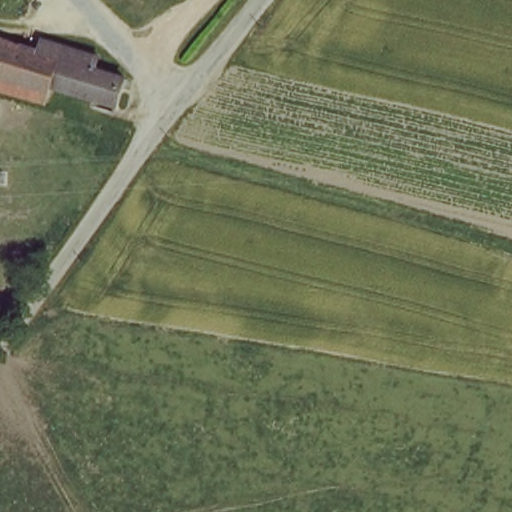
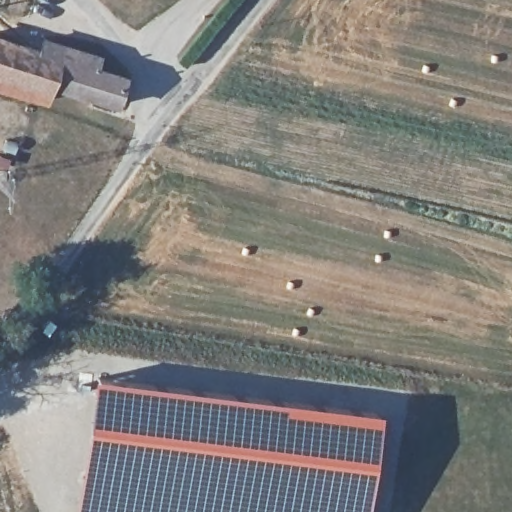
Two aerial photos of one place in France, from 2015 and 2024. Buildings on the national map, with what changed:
unchanged [(74,63),(100,73),(87,101),(28,86),(21,95),(0,88),(0,45),(12,49),(20,36),(76,54),(74,63)]
new [(81,428),(90,373),(379,410),(373,474),(367,512),(72,512),(81,428)]

